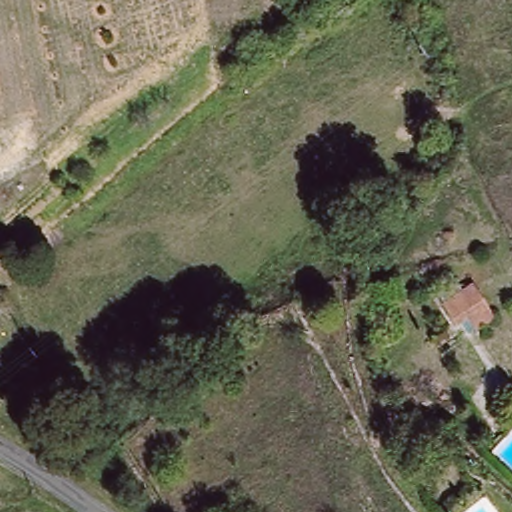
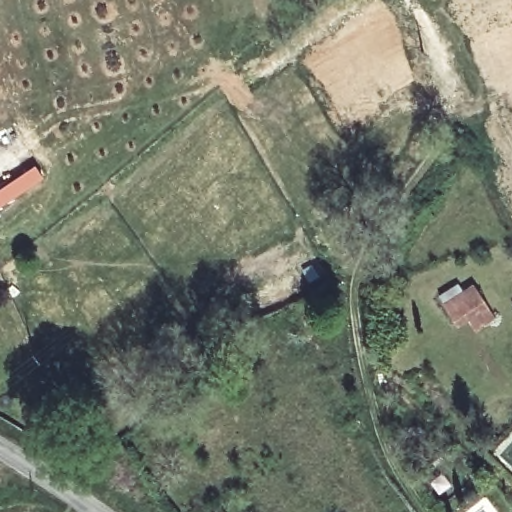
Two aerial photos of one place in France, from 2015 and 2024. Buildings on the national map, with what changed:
new [(0,204),(0,189),(34,166),(42,177),(0,204)]
unchanged [(488,305),(457,324),(446,307),(476,289),(480,293),(488,305)]

